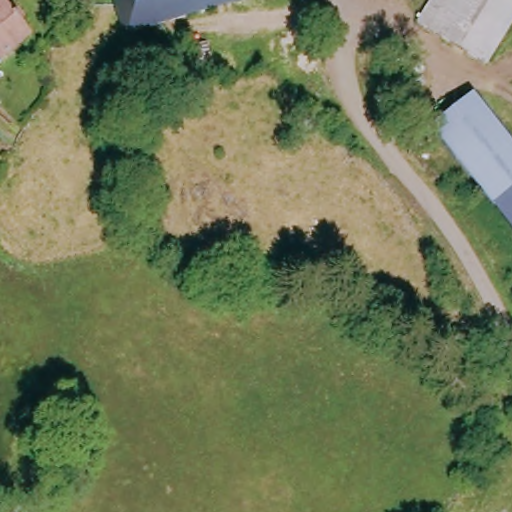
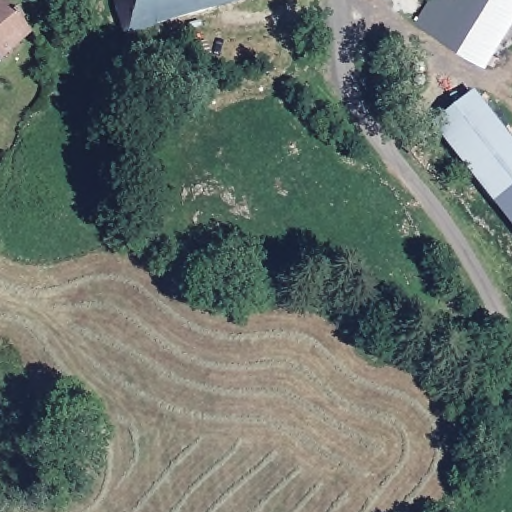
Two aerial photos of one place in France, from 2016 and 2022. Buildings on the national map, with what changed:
unchanged [(121,36),(110,0),(171,0),(178,23),(121,36)]
unchanged [(178,23),(171,0),(260,0),(178,23)]
unchanged [(495,71),(420,37),(428,18),(446,24),(457,0),(512,0),(512,32),(495,71)]
unchanged [(0,62),(0,10),(25,39),(0,62)]
unchanged [(200,66),(180,73),(176,52),(195,46),(200,66)]
unchanged [(427,130),(468,96),(512,155),(512,241),(427,130)]

